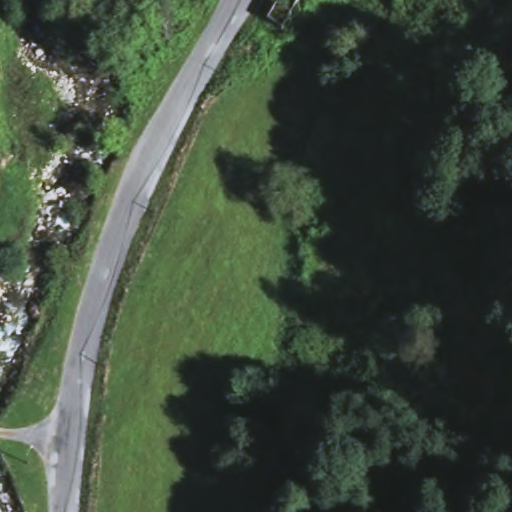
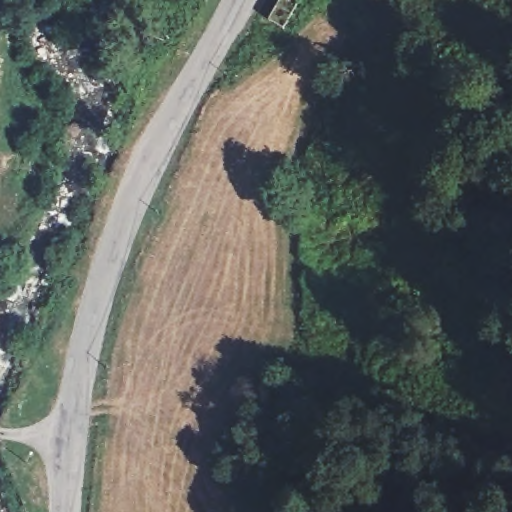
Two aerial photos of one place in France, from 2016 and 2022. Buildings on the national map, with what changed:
unchanged [(287,22),(269,12),(276,2),(277,0),(300,0),(287,22)]

